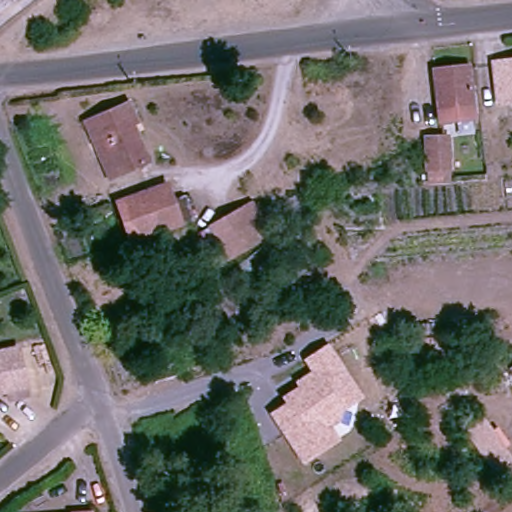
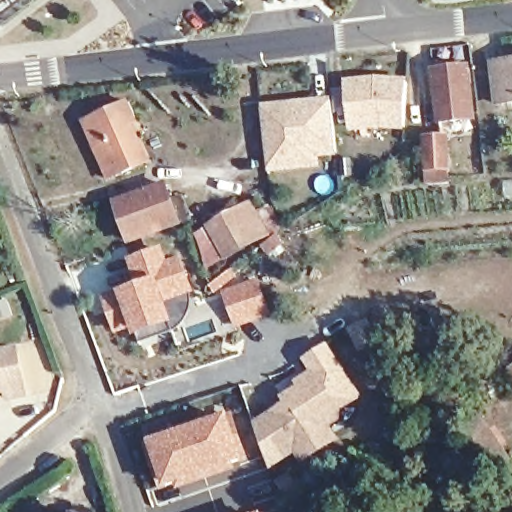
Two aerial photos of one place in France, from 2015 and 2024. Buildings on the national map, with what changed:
unchanged [(512,59),(512,99),(502,100),(497,61),(512,59)]
unchanged [(468,116),(435,120),(429,66),(462,62),(468,116)]
new [(376,76),(407,77),(405,131),(381,130),(349,133),(344,80),(376,76)]
new [(330,96),(338,156),(320,157),(321,167),(267,172),(261,104),(330,96)]
unchanged [(152,158),(114,175),(89,118),(132,99),(141,118),(136,120),(152,158)]
unchanged [(442,133),(444,180),(421,181),(420,134),(442,133)]
unchanged [(165,186),(172,203),(184,199),(192,221),(164,232),(149,192),(165,186)]
unchanged [(164,232),(130,244),(116,204),(149,192),(164,232)]
unchanged [(255,200),(273,231),(232,254),(215,224),(255,200)]
new [(134,286),(125,259),(163,246),(168,260),(180,255),(191,287),(191,298),(168,305),(178,325),(137,342),(130,332),(114,337),(100,297),(134,286)]
new [(231,269),(240,283),(257,277),(271,316),(234,330),(220,292),(212,294),(208,287),(231,269)]
unchanged [(13,381),(0,383),(0,342),(22,337),(32,385),(15,388),(13,381)]
unchanged [(363,397),(345,410),(341,422),(332,428),(341,442),(304,467),(268,414),(285,404),(282,398),(298,387),(295,382),(311,372),(303,359),(328,343),(363,397)]
unchanged [(512,358),(512,385),(501,366),(512,358)]
new [(234,412),(250,459),(245,462),(235,466),(236,468),(176,490),(175,486),(162,489),(160,492),(144,443),(234,412)]
new [(271,470),(255,422),(268,414),(296,455),(271,470)]
unchanged [(507,460),(487,471),(465,433),(482,422),(507,460)]
unchanged [(95,510),(95,512),(78,512),(77,512),(95,510)]

